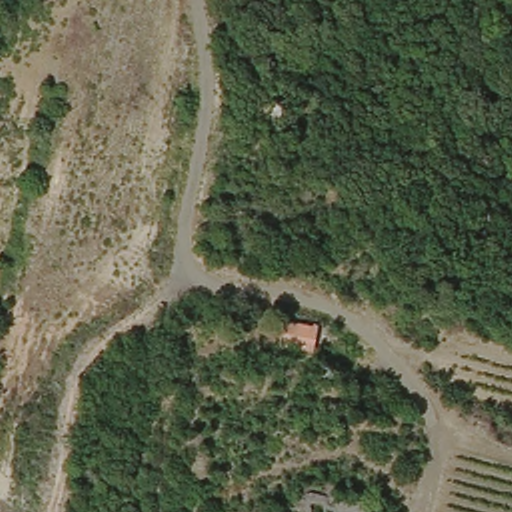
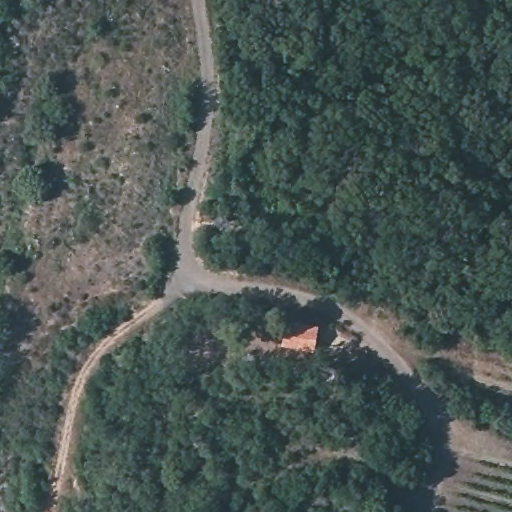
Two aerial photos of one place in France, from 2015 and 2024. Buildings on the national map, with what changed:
unchanged [(286,314),(317,320),(312,343),(282,337),(286,314)]

